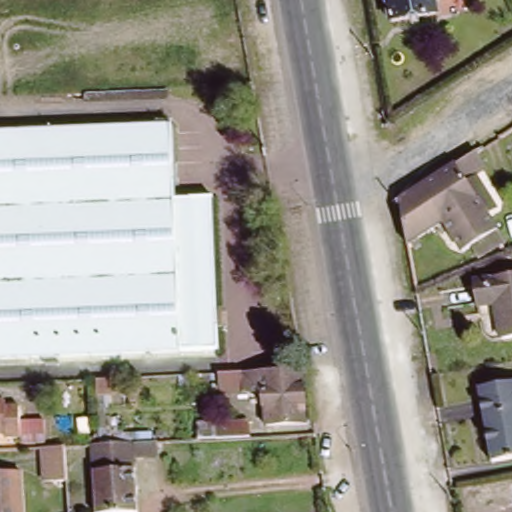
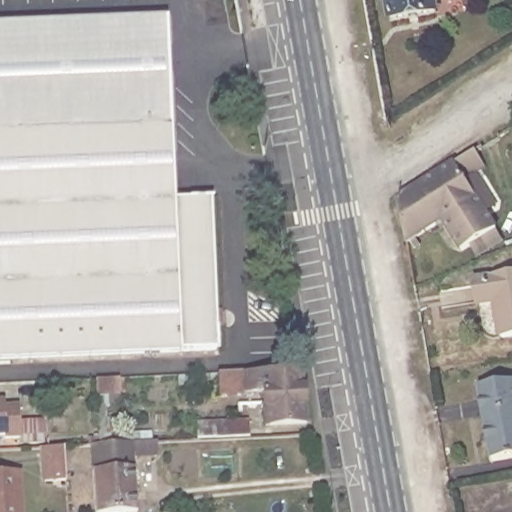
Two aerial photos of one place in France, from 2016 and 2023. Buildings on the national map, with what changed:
unchanged [(437,15),(390,23),(386,0),(435,0),(437,15)]
new [(0,24),(169,17),(173,128),(0,134),(0,24)]
demolished [(197,69),(152,70),(150,29),(197,29),(197,69)]
demolished [(130,30),(130,44),(115,43),(115,30),(130,30)]
demolished [(116,92),(117,70),(134,70),(134,91),(116,92)]
unchanged [(177,198),(214,197),(219,350),(0,358),(0,134),(173,128),(177,198)]
unchanged [(400,202),(476,153),(487,170),(467,182),(497,231),(462,253),(443,224),(407,247),(400,202)]
unchanged [(502,340),(495,305),(477,308),(474,285),(512,278),(512,338),(502,340)]
unchanged [(264,410),(263,394),(219,395),(218,375),(302,371),(304,425),(283,426),(264,427),(264,410)]
unchanged [(112,380),(121,380),(122,395),(98,396),(98,394),(97,381),(112,380)]
unchanged [(490,463),(478,389),(512,384),(512,459),(490,463)]
unchanged [(7,408),(21,407),(24,439),(9,440),(8,434),(0,435),(0,401),(7,401),(7,408)]
unchanged [(200,442),(200,426),(234,425),(235,440),(200,442)]
unchanged [(100,447),(134,446),(157,444),(158,458),(135,459),(137,512),(97,512),(95,447),(100,447)]
unchanged [(66,463),(45,464),(44,450),(65,449),(66,463)]
unchanged [(23,512),(0,512),(0,475),(22,474),(23,512)]

